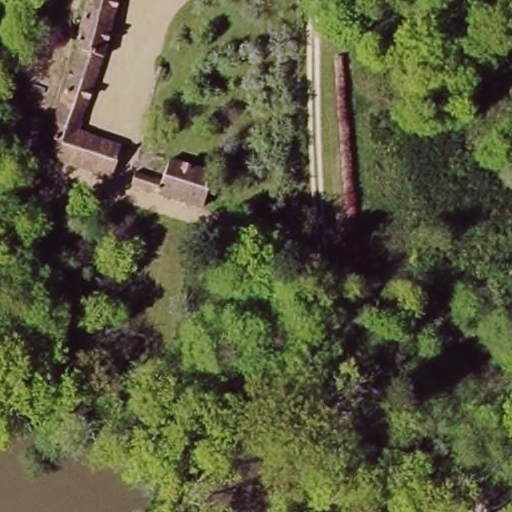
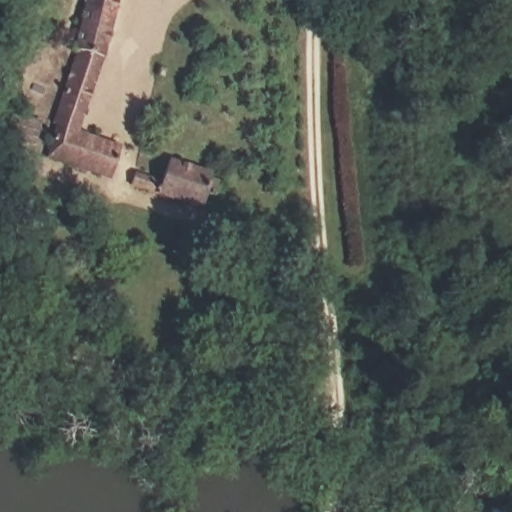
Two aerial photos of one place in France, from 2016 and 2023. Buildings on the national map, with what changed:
unchanged [(87,127),(136,144),(123,186),(49,159),(60,123),(55,118),(77,51),(68,44),(82,0),(123,0),(87,127)]
unchanged [(137,170),(157,178),(167,160),(208,177),(204,191),(216,198),(211,222),(129,193),(137,170)]

